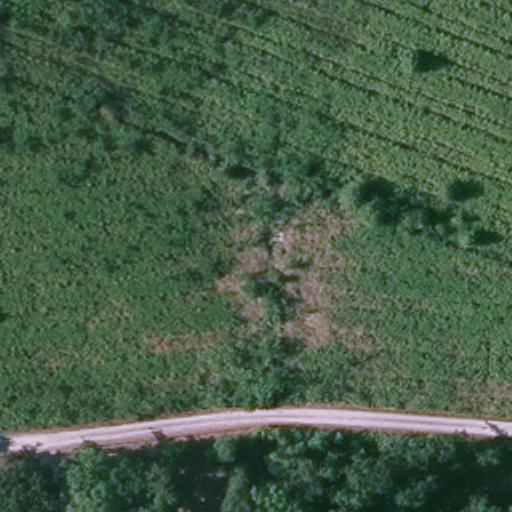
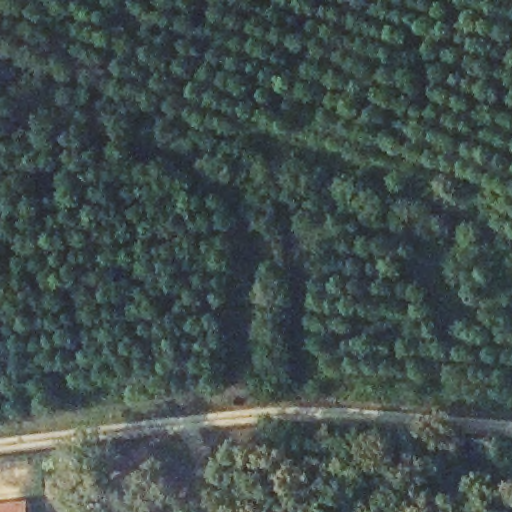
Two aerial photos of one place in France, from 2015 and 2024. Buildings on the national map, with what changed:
new [(29,502),(29,512),(0,512),(0,505),(29,502)]
demolished [(29,507),(29,512),(0,512),(0,511),(29,507)]

